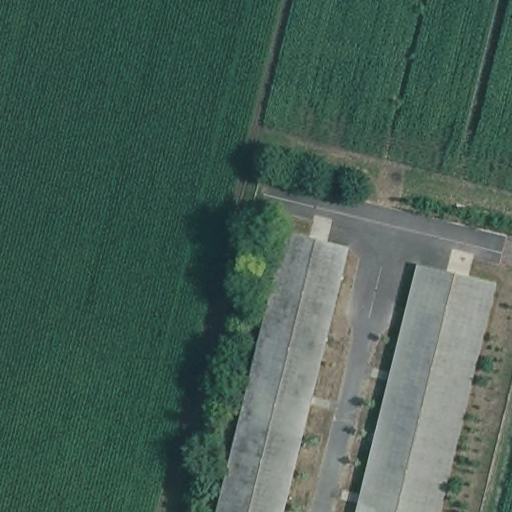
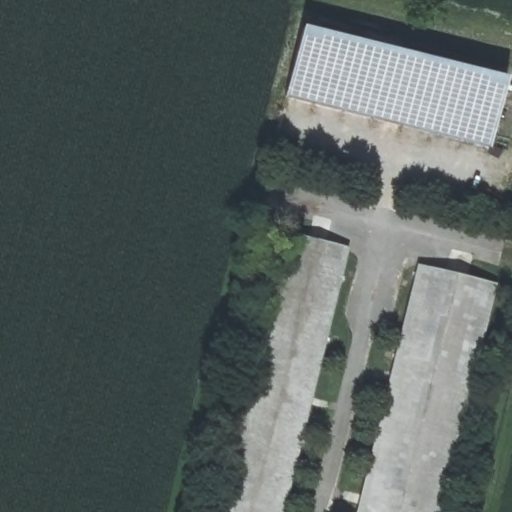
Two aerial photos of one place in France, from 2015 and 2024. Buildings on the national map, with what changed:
new [(511,78),(491,149),(284,97),(305,26),(511,78)]
unchanged [(355,249),(289,512),(223,512),(292,232),(355,249)]
unchanged [(422,268),(429,270),(500,287),(444,512),(362,512),(422,268)]

